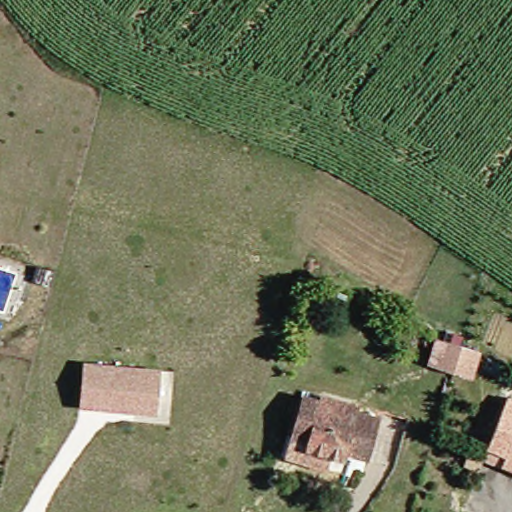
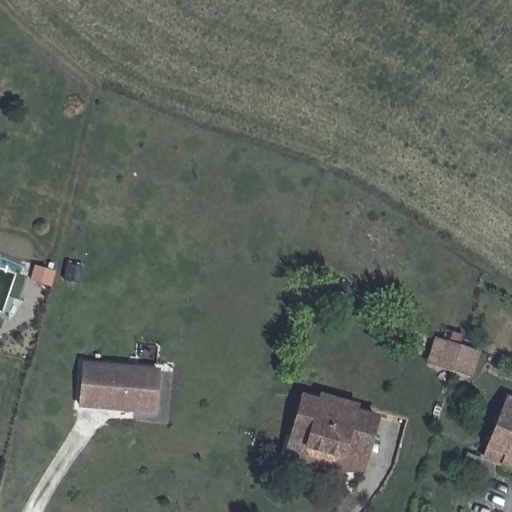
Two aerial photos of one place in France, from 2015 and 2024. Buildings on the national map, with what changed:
unchanged [(476,355),(467,383),(426,372),(435,344),(476,355)]
unchanged [(76,365),(151,371),(147,414),(72,409),(76,365)]
unchanged [(339,463),(294,449),(299,434),(309,401),(332,407),(334,401),(354,407),(366,411),(364,417),(384,423),(371,464),(369,472),(350,466),(339,463)]
unchanged [(512,408),(512,456),(494,449),(512,408)]
unchanged [(512,466),(512,469),(511,469),(512,466)]

